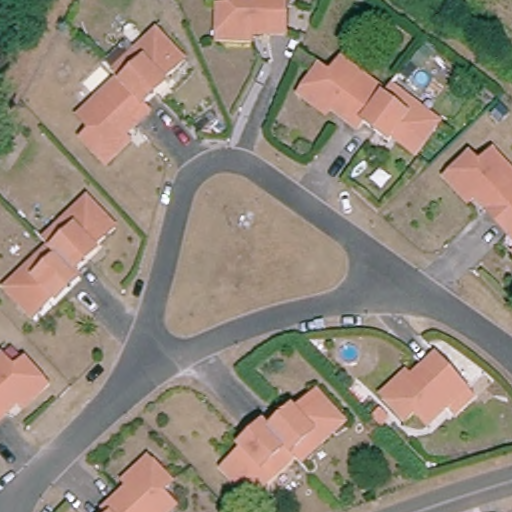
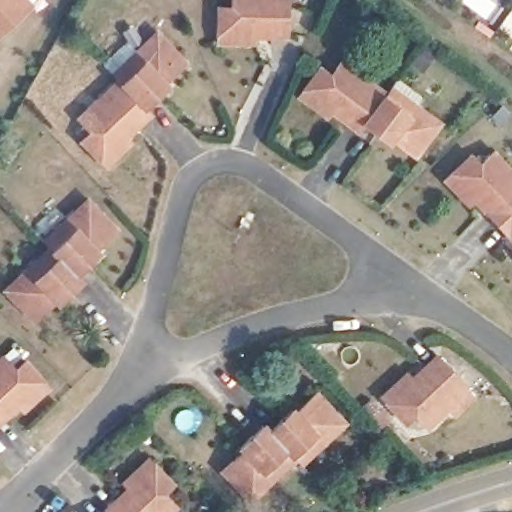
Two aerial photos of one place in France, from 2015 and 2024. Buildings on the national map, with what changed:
new [(32,0),(35,3),(0,35),(0,0),(32,0)]
unchanged [(249,34),(249,41),(214,41),(214,5),(227,6),(227,0),(282,0),(282,34),(249,34)]
unchanged [(81,125),(70,111),(113,77),(108,71),(155,34),(181,66),(157,85),(160,89),(137,107),(141,113),(115,134),(120,140),(92,161),(70,133),(81,125)]
unchanged [(313,69),(324,77),(335,61),(380,92),(384,85),(434,119),(410,154),(385,137),(382,141),(358,123),(353,130),(326,111),(321,118),(293,98),(313,69)]
unchanged [(477,164),(490,151),(512,173),(512,239),(495,222),(472,199),(466,204),(442,179),(467,154),(477,164)]
unchanged [(0,290),(0,287),(44,248),(39,243),(85,204),(112,236),(90,255),(92,258),(70,278),(75,284),(51,304),(49,300),(25,320),(0,290)]
unchanged [(407,377),(412,382),(436,360),(468,393),(428,431),(416,417),(406,427),(381,401),(407,377)]
unchanged [(9,371),(19,362),(42,389),(15,411),(10,406),(0,415),(0,361),(9,371)]
unchanged [(240,453),(236,450),(259,429),(263,434),(285,413),(288,417),(310,396),(339,427),(295,468),(290,464),(246,504),(217,473),(240,453)]
unchanged [(100,512),(126,490),(121,485),(147,462),(170,489),(160,498),(172,512),(101,512),(100,512)]

